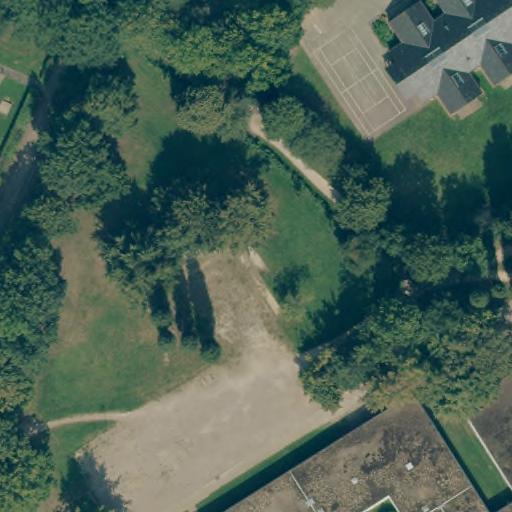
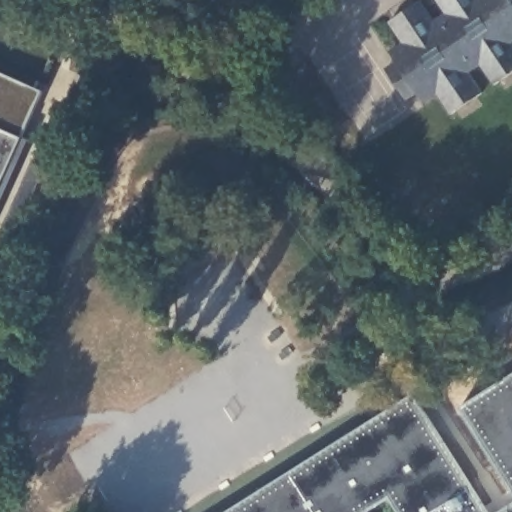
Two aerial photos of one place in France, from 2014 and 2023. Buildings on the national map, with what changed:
unchanged [(382,73),(392,66),(386,57),(399,48),(386,27),(416,7),(431,28),(443,20),(430,0),(512,0),(512,47),(507,50),(512,57),(512,76),(490,91),(476,70),(464,79),(478,99),(447,120),(433,99),(419,108),(414,100),(404,106),(382,73)]
new [(22,138),(29,141),(0,207),(0,73),(43,93),(22,138)]
unchanged [(457,408),(512,374),(512,497),(457,408)]
unchanged [(480,512),(391,512),(383,500),(363,512),(224,512),(408,396),(480,512)]
unchanged [(493,512),(512,500),(512,512),(493,512)]

